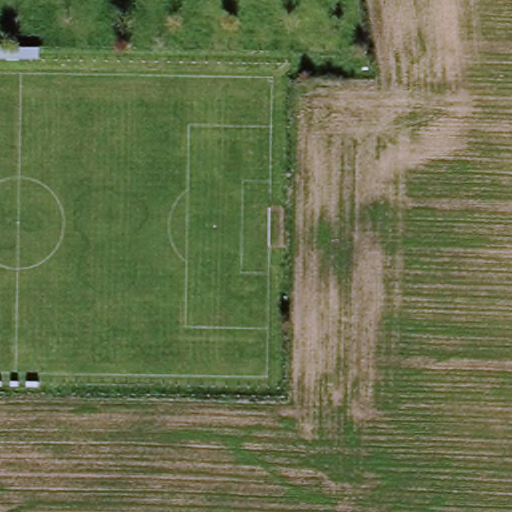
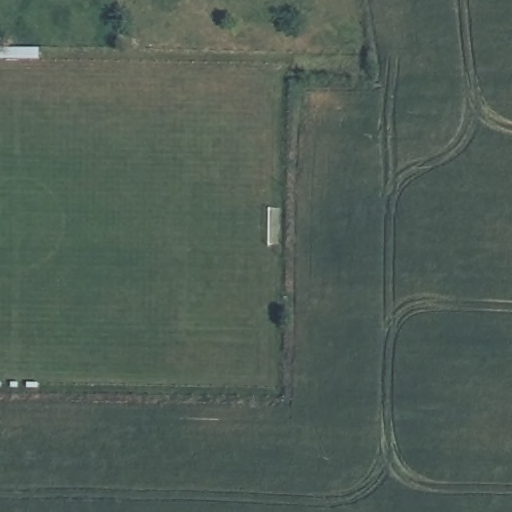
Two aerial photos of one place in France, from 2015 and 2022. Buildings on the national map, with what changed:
[]

